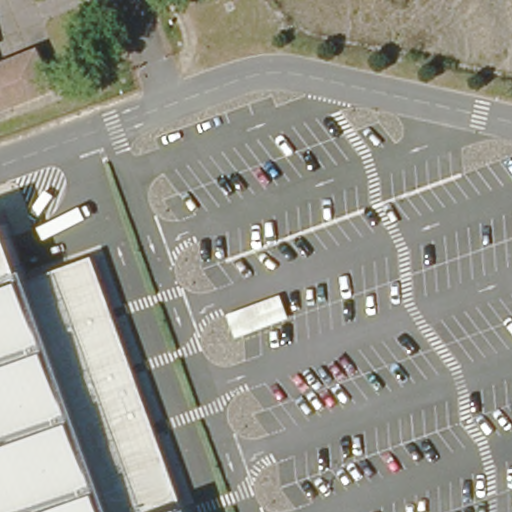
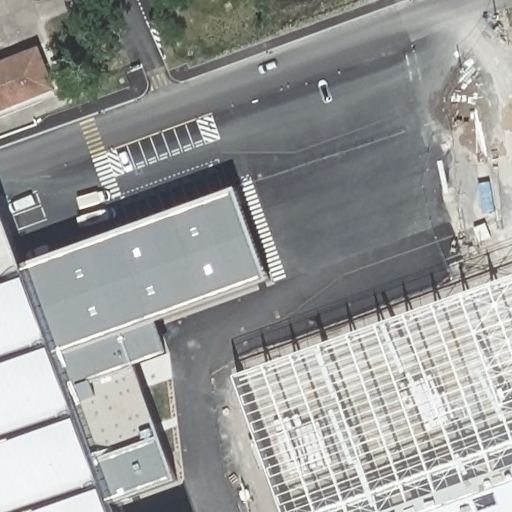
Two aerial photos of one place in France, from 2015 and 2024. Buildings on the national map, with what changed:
unchanged [(51,87),(0,107),(0,61),(35,47),(51,87)]
unchanged [(87,257),(175,496),(179,508),(180,512),(0,512),(0,223),(23,282),(87,257)]
new [(238,378),(512,279),(512,512),(286,512),(238,378)]

